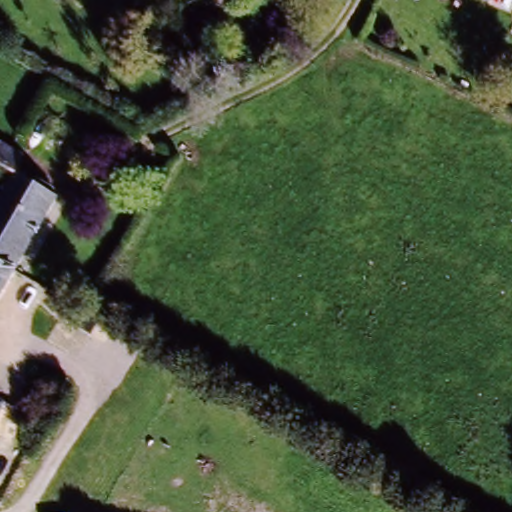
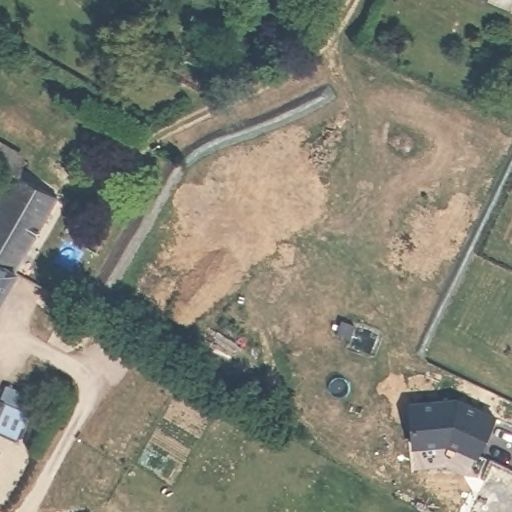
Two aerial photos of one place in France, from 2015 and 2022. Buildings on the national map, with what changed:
unchanged [(510,0),(512,0),(512,1),(510,0)]
unchanged [(0,147),(7,151),(0,165),(0,147)]
unchanged [(27,180),(32,172),(50,181),(47,190),(55,194),(9,281),(0,276),(0,187),(8,171),(27,180)]
unchanged [(0,300),(0,276),(9,281),(0,300)]
new [(458,399),(495,416),(476,457),(451,444),(413,448),(409,404),(458,399)]
unchanged [(0,408),(0,403),(2,404),(0,408)]

